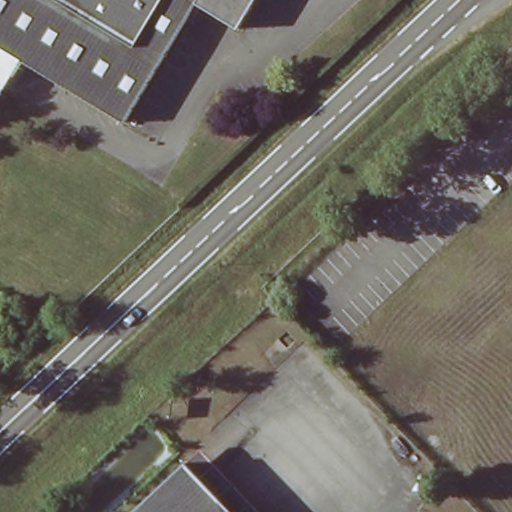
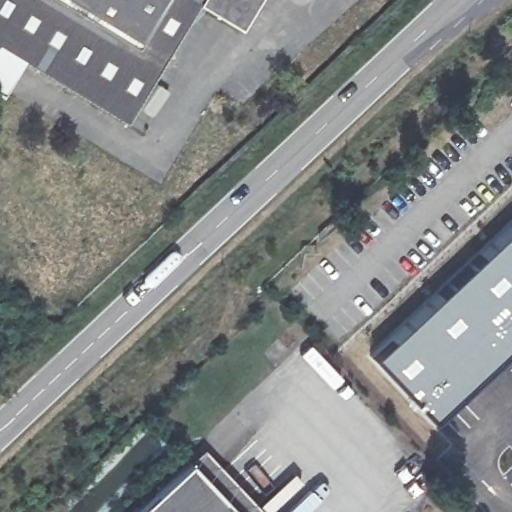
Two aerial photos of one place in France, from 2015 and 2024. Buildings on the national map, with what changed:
unchanged [(192,2),(130,104),(0,26),(0,0),(251,0),(234,27),(192,2)]
unchanged [(120,121),(17,59),(0,49),(0,26),(130,104),(120,121)]
unchanged [(0,86),(0,49),(17,59),(0,86)]
new [(415,313),(512,222),(512,342),(485,367),(430,422),(367,357),(415,313)]
unchanged [(184,460),(232,512),(129,512),(184,460)]

